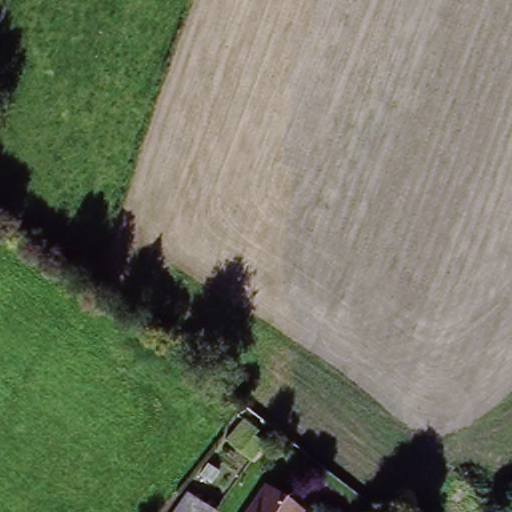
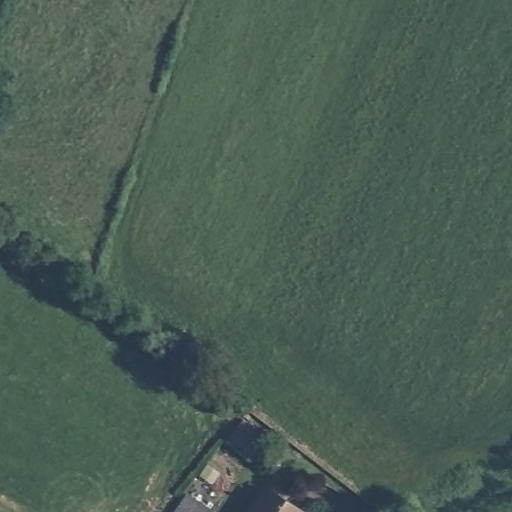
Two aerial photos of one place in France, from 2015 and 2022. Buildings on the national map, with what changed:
unchanged [(227,436),(241,419),(257,433),(255,436),(264,443),(251,458),(227,436)]
unchanged [(258,489),(294,509),(293,512),(246,512),(258,489)]
unchanged [(205,512),(176,512),(184,497),(207,509),(205,512)]

